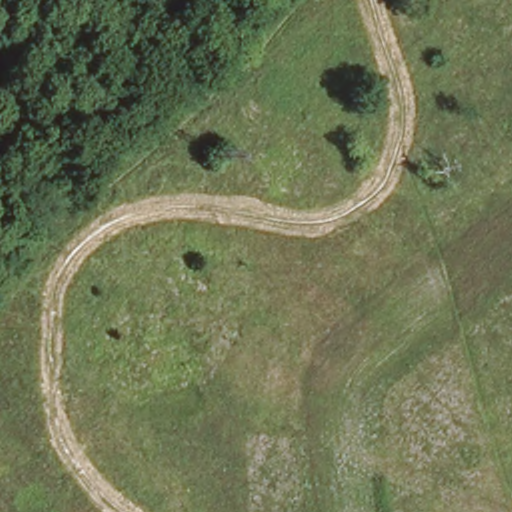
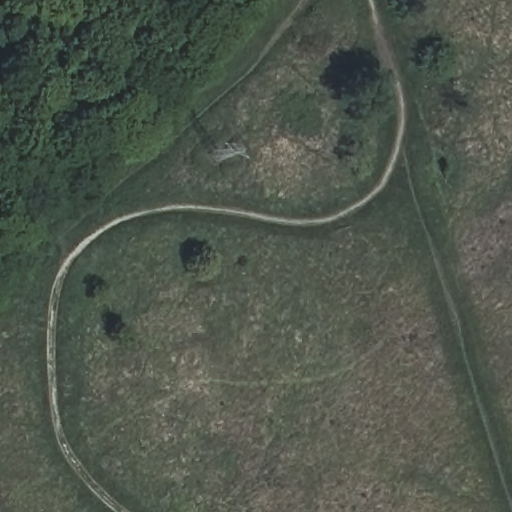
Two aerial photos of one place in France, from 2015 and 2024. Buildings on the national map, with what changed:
[]

